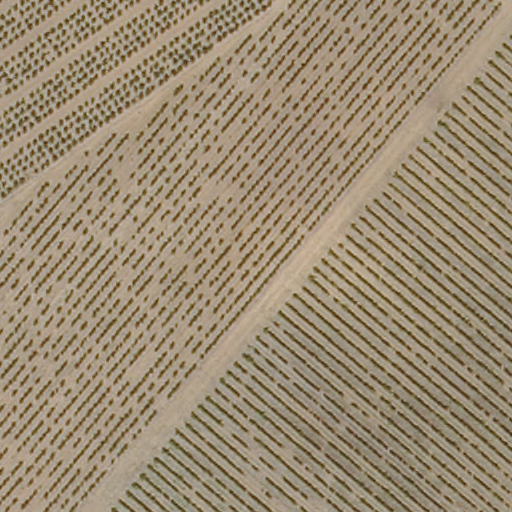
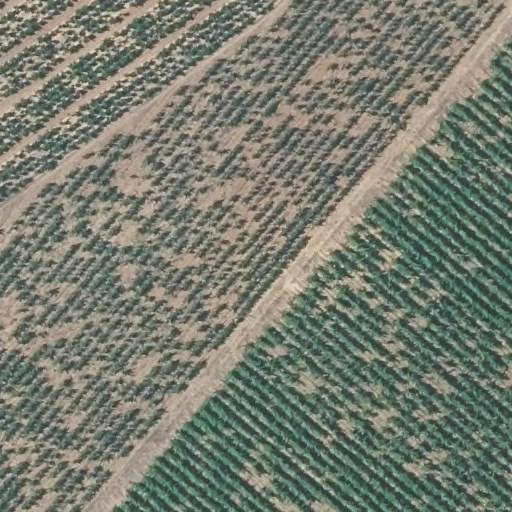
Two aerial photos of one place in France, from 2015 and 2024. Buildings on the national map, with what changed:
[]

